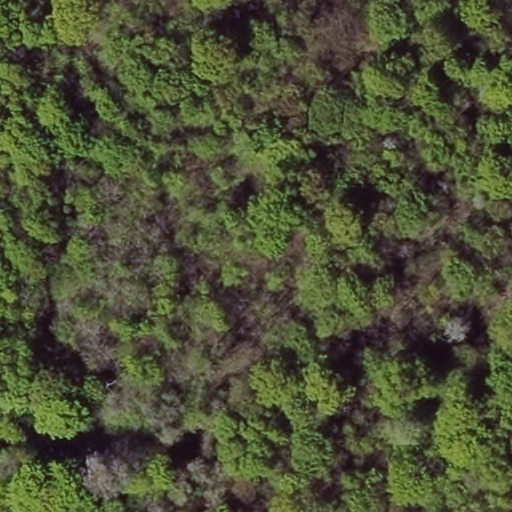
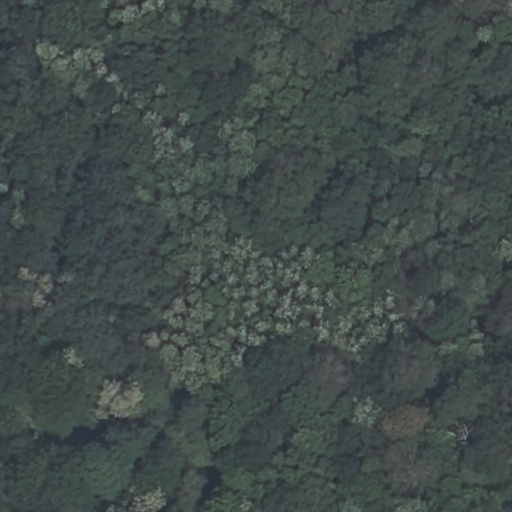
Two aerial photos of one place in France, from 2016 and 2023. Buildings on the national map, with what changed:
[]

